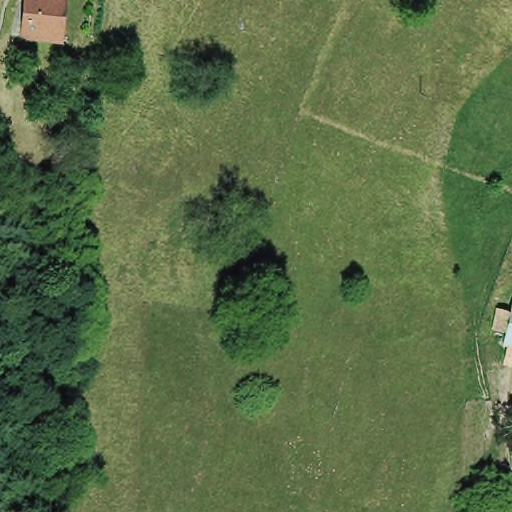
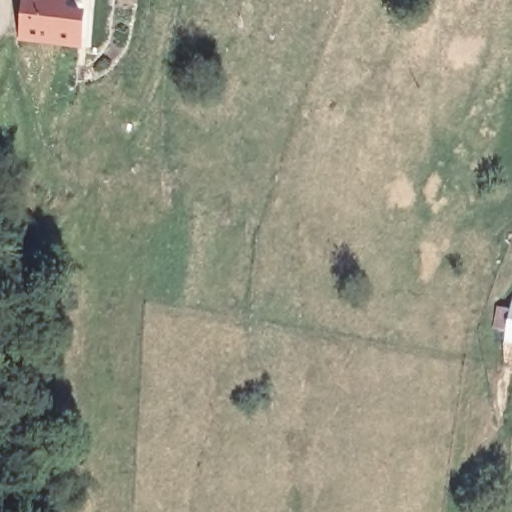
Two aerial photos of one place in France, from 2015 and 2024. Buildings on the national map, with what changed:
unchanged [(18,0),(58,0),(54,36),(15,32),(18,0)]
unchanged [(512,318),(512,341),(507,340),(511,322),(512,318)]

